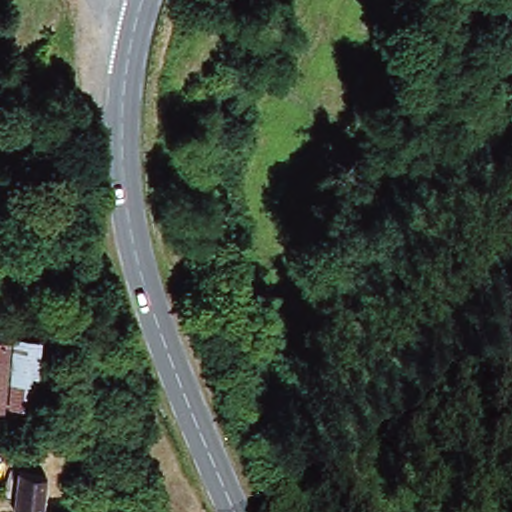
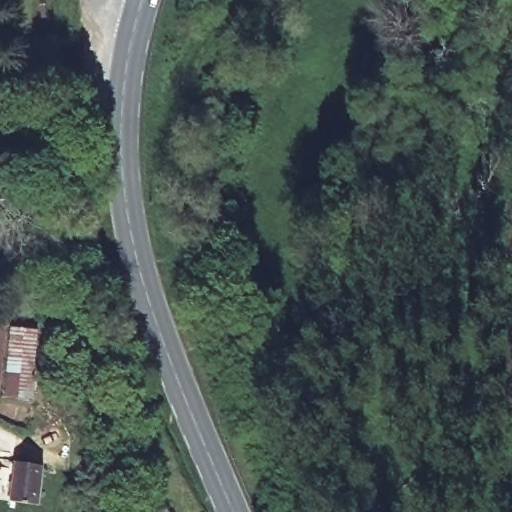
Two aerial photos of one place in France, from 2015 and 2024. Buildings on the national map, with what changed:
unchanged [(44,383),(22,385),(17,328),(38,325),(44,383)]
unchanged [(0,396),(0,328),(7,329),(0,396)]
unchanged [(54,422),(67,422),(66,441),(52,438),(54,422)]
unchanged [(44,460),(28,453),(35,438),(51,446),(44,460)]
unchanged [(37,503),(10,503),(9,463),(37,463),(37,503)]

